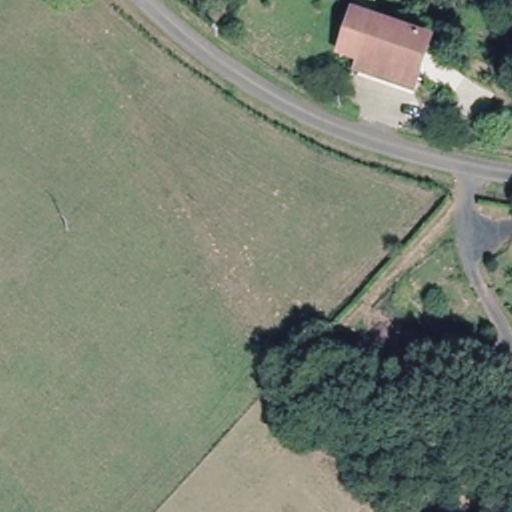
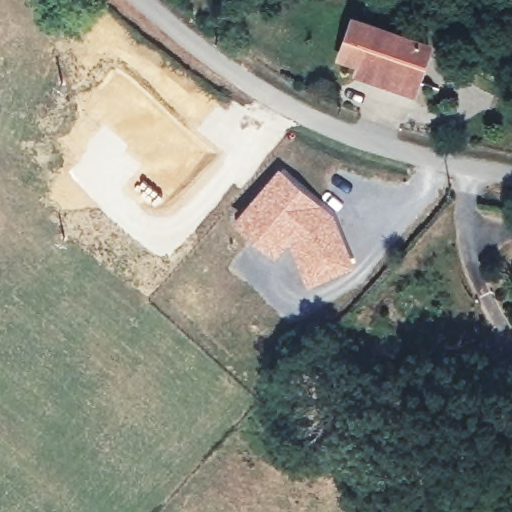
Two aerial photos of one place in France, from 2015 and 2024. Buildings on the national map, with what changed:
unchanged [(369,64),(375,50),(353,38),(367,6),(439,39),(424,70),(418,86),(369,64)]
new [(335,212),(356,267),(308,286),(291,240),(276,256),(233,219),(280,165),(335,212)]

